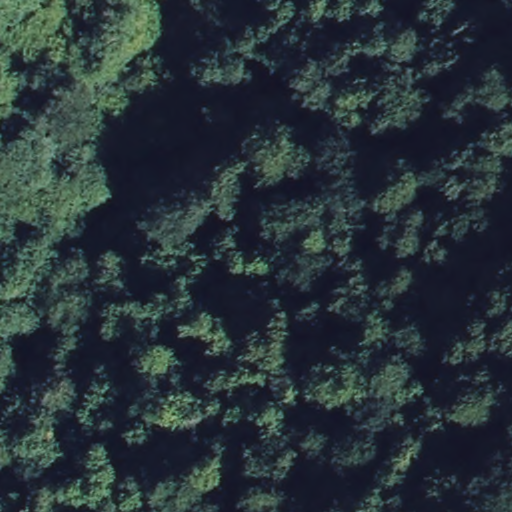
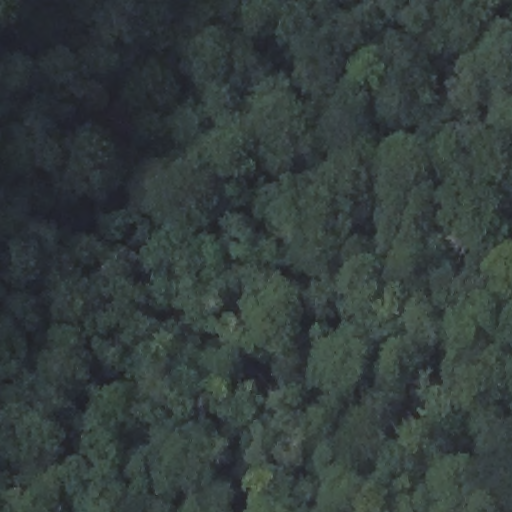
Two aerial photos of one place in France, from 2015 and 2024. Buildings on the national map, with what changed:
unchanged [(210,42),(171,103),(144,88),(146,84),(183,27),(210,42)]

